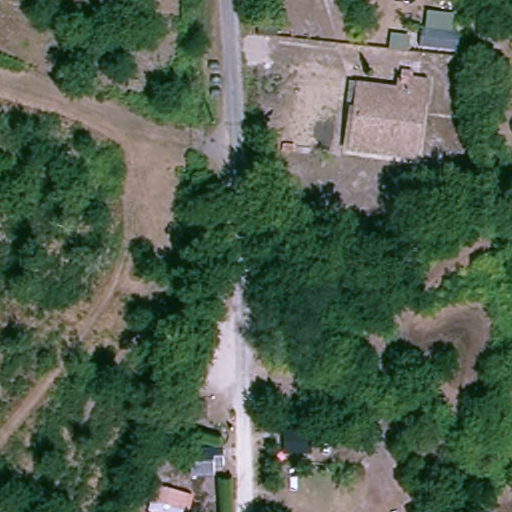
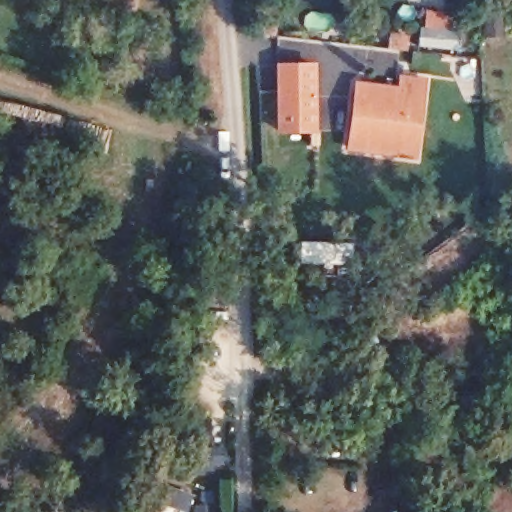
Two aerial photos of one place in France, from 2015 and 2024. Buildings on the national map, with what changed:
unchanged [(416,32),(464,37),(462,51),(415,45),(416,32)]
new [(318,61),(319,134),(277,135),(276,62),(318,61)]
unchanged [(396,150),(345,145),(351,82),(395,87),(398,66),(420,68),(416,90),(410,151),(396,150)]

